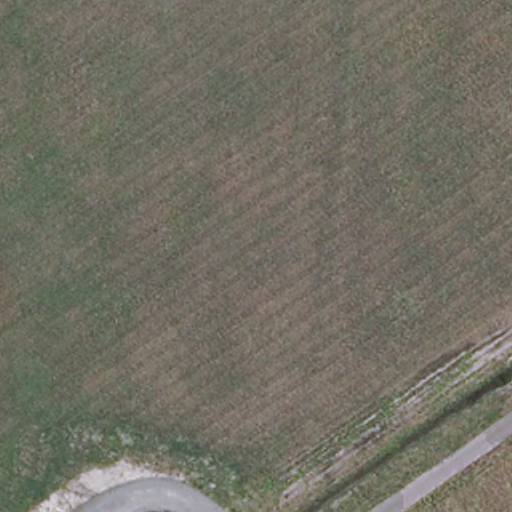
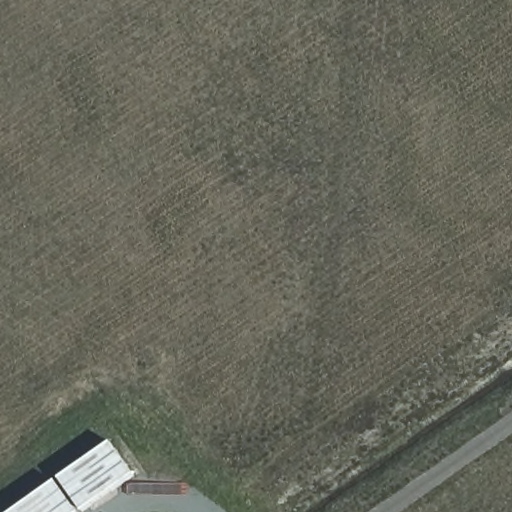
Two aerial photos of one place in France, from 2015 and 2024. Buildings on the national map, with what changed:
new [(135,476),(83,511),(60,477),(111,442),(135,476)]
new [(79,512),(12,512),(56,480),(79,512)]

